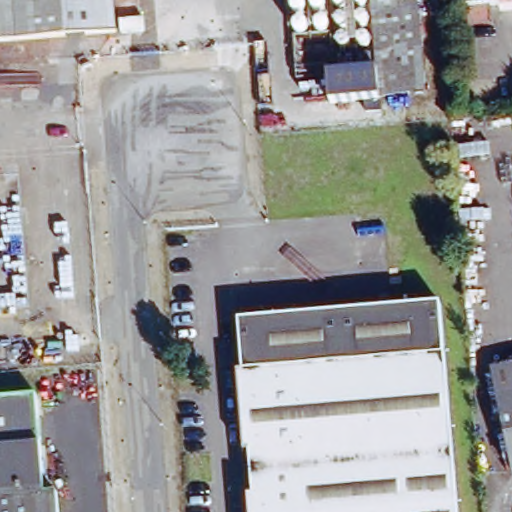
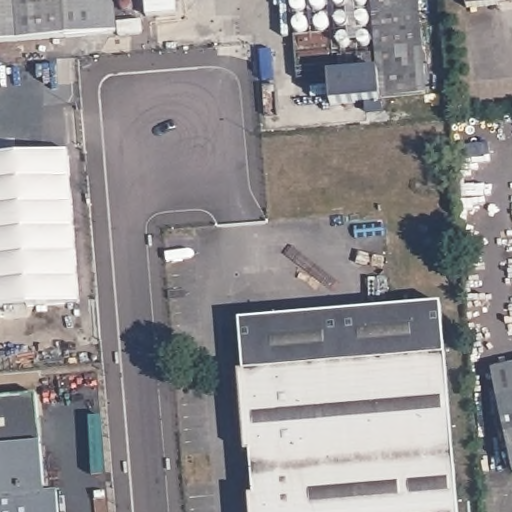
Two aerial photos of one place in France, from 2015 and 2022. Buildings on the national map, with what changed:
unchanged [(115,28),(0,37),(0,0),(112,0),(115,28)]
unchanged [(426,92),(382,96),(382,99),(332,104),(330,75),(380,71),(374,0),(418,0),(426,92)]
unchanged [(463,0),(512,0),(512,9),(464,14),(463,0)]
new [(80,302),(0,309),(0,154),(67,149),(80,302)]
unchanged [(239,457),(231,376),(236,376),(232,325),(442,304),(461,512),(249,512),(244,457),(239,457)]
unchanged [(495,360),(512,358),(512,466),(504,466),(495,360)]
unchanged [(37,393),(45,493),(60,492),(62,512),(0,512),(0,397),(37,393)]

